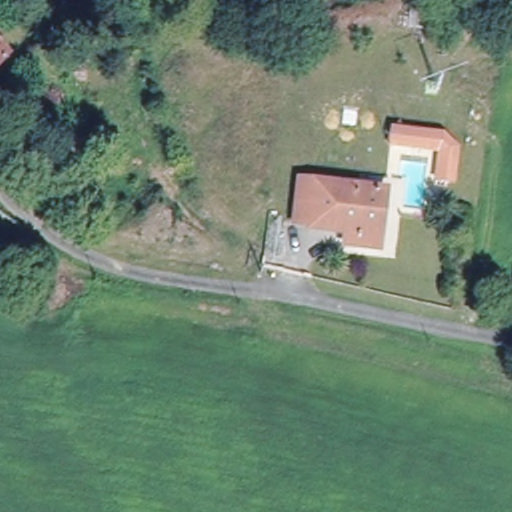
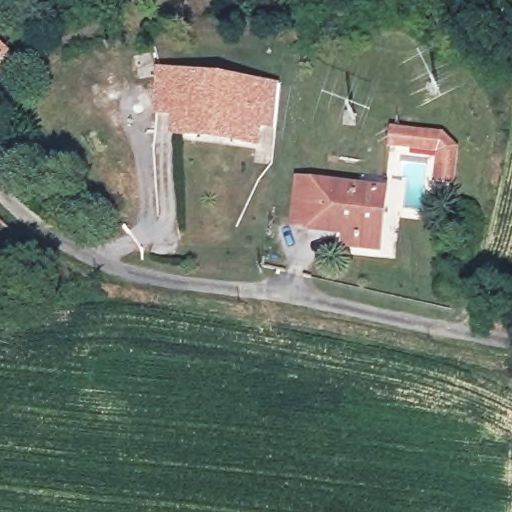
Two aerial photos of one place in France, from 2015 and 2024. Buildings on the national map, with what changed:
unchanged [(15,55),(0,71),(0,40),(15,55)]
new [(162,73),(180,75),(174,132),(155,130),(162,73)]
new [(174,132),(180,75),(262,84),(255,141),(232,138),(197,135),(174,132)]
new [(262,84),(280,86),(274,143),(255,141),(262,84)]
unchanged [(391,128),(445,133),(460,150),(457,186),(434,183),(437,154),(389,148),(391,128)]
unchanged [(344,233),(306,229),(307,225),(292,223),(297,181),(385,191),(379,249),(354,247),(343,246),(344,233)]
unchanged [(21,277),(9,270),(24,246),(35,253),(21,277)]
unchanged [(53,265),(43,279),(28,269),(37,255),(53,265)]

